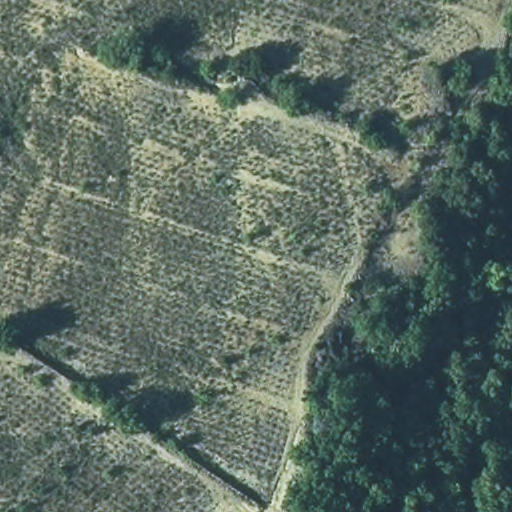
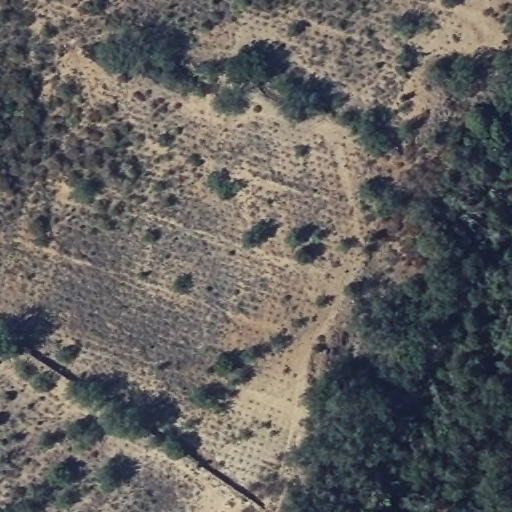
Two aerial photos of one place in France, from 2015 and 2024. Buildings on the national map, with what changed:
unchanged [(232,86),(255,79),(260,93),(240,98),(232,86)]

